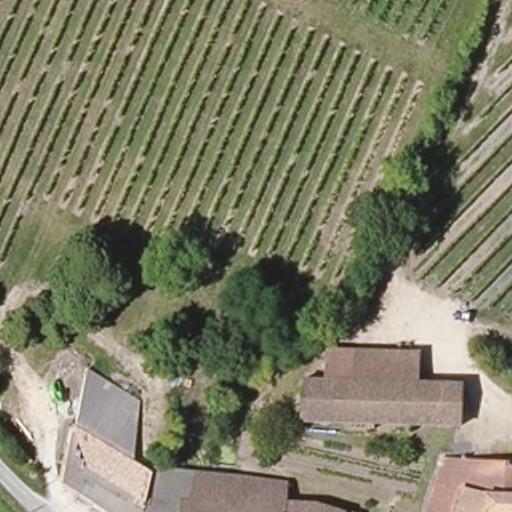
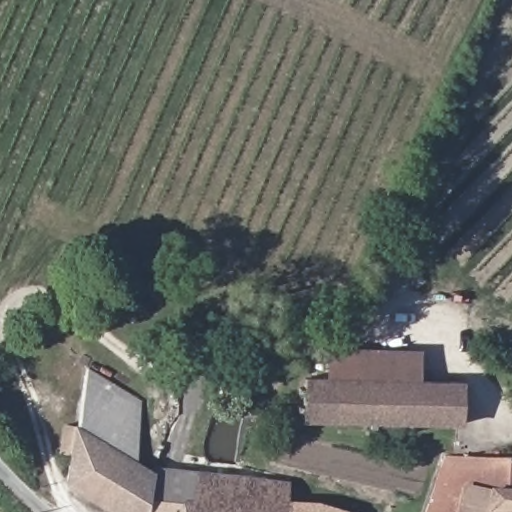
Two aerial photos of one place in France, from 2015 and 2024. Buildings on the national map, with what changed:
unchanged [(358,379),(359,352),(416,352),(416,380),(358,379)]
unchanged [(138,459),(155,470),(147,487),(135,512),(111,512),(61,479),(68,451),(57,448),(62,422),(74,425),(87,367),(136,396),(138,459)]
unchanged [(416,380),(464,380),(461,427),(304,421),(305,379),(358,379),(416,380)]
unchanged [(512,460),(512,512),(428,512),(454,452),(512,460)]
unchanged [(135,512),(147,487),(155,470),(159,462),(287,476),(286,496),(285,512),(135,512)]
unchanged [(318,499),(348,512),(285,512),(286,496),(318,499)]

